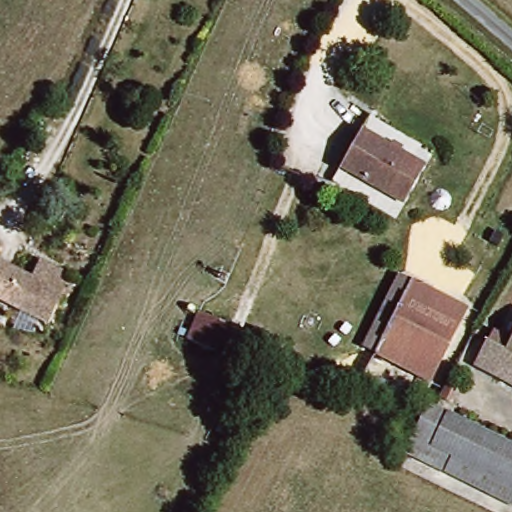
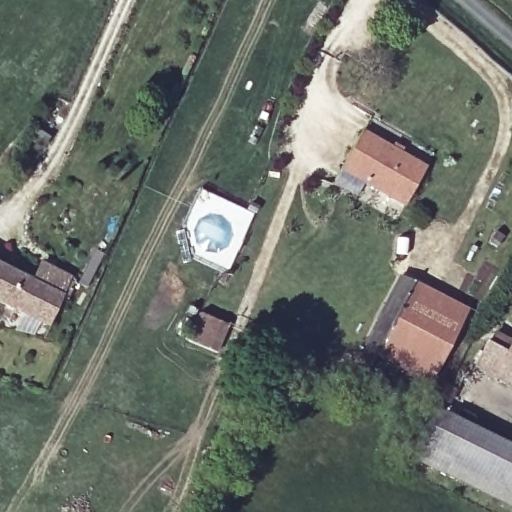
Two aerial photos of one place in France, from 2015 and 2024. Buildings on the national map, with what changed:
unchanged [(403,207),(338,171),(359,133),(424,169),(403,207)]
unchanged [(0,265),(33,280),(41,264),(72,278),(63,295),(49,325),(0,303),(0,265)]
unchanged [(410,284),(464,310),(430,382),(374,356),(410,284)]
unchanged [(477,372),(490,346),(508,355),(512,348),(512,391),(477,372)]
unchanged [(447,390),(457,395),(450,408),(440,403),(444,395),(447,390)]
unchanged [(512,448),(512,486),(462,463),(455,477),(411,457),(434,410),(512,448)]
unchanged [(455,477),(462,463),(512,486),(512,504),(455,477)]

